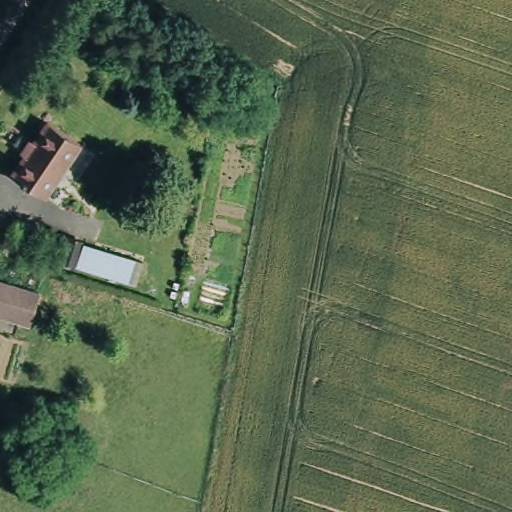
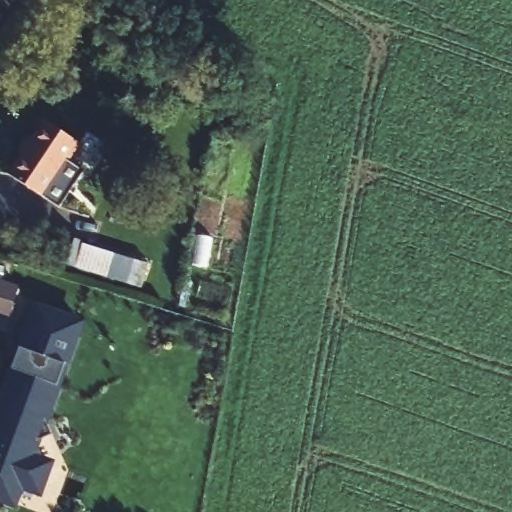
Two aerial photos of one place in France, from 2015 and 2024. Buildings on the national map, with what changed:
unchanged [(45,118),(79,140),(44,192),(11,172),(22,154),(15,148),(27,129),(33,134),(45,118)]
unchanged [(62,239),(78,245),(71,269),(55,264),(62,239)]
unchanged [(143,261),(135,286),(75,268),(81,243),(143,261)]
unchanged [(23,284),(15,316),(0,312),(0,278),(23,284)]
new [(36,307),(38,301),(84,320),(36,453),(55,461),(42,497),(23,490),(16,508),(0,502),(0,397),(32,306),(36,307)]

